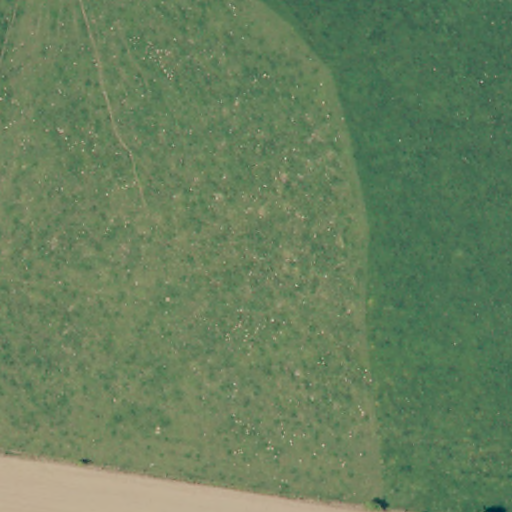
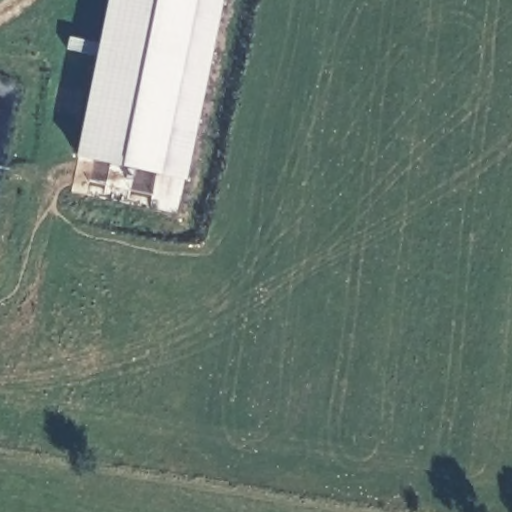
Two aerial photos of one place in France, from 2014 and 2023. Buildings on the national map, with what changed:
new [(157,171),(77,156),(110,0),(191,0),(157,171)]

